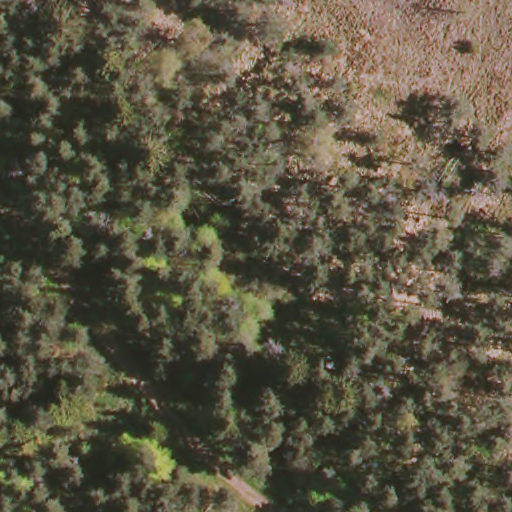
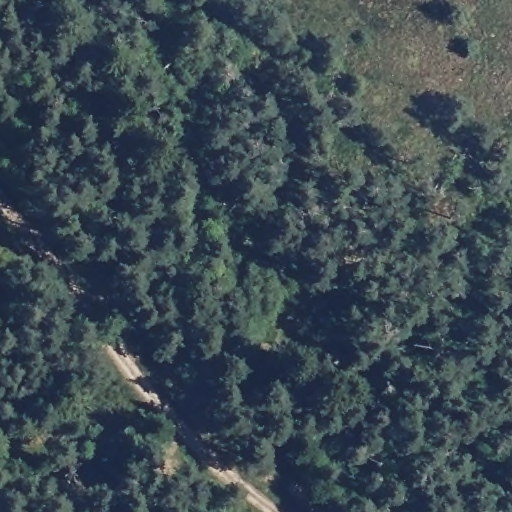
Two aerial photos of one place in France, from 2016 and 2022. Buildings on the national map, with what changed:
[]

